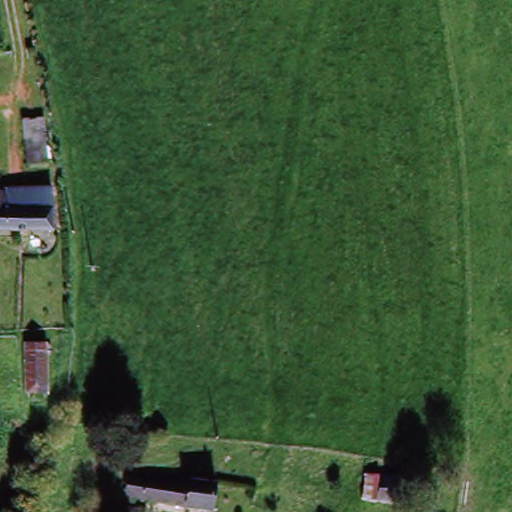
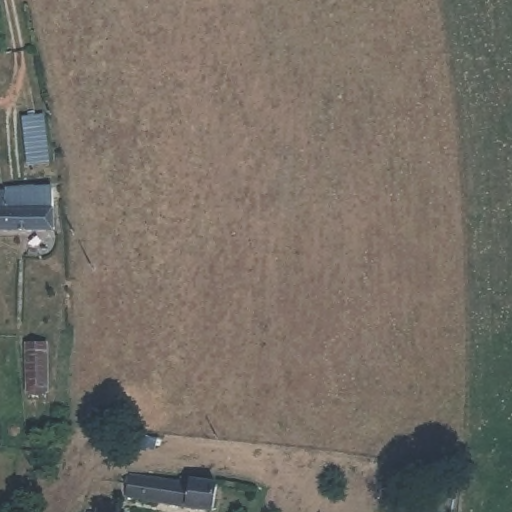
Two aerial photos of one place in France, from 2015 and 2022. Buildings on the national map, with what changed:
unchanged [(43,140),(18,145),(15,129),(39,124),(43,140)]
unchanged [(50,192),(55,230),(0,236),(0,197),(50,192)]
unchanged [(49,389),(33,390),(29,342),(45,341),(49,389)]
unchanged [(181,486),(183,478),(222,486),(217,512),(208,512),(130,499),(133,479),(181,486)]
unchanged [(381,483),(412,486),(411,504),(379,502),(381,483)]

